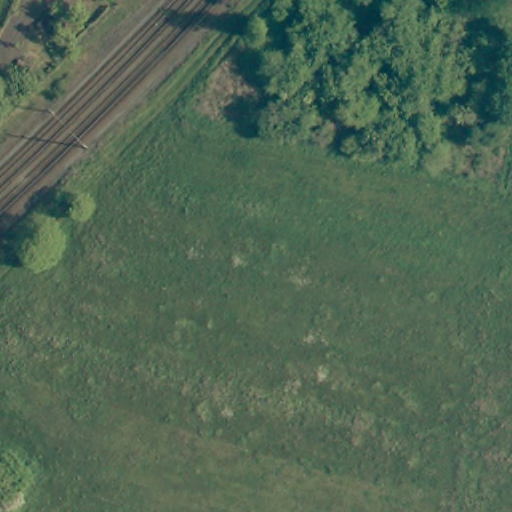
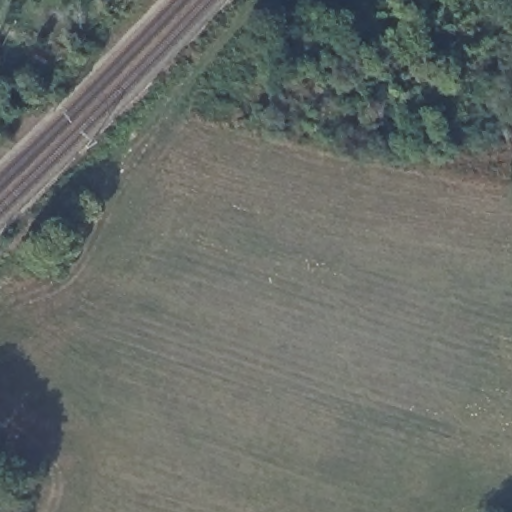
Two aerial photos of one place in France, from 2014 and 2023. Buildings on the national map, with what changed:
[]

